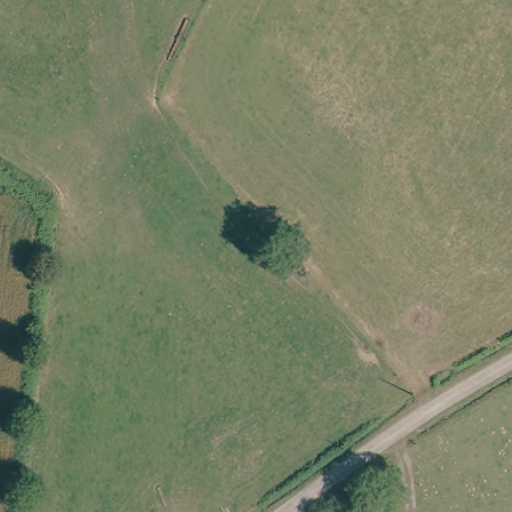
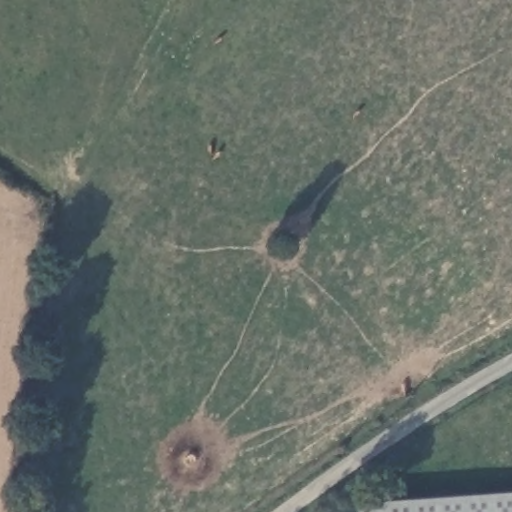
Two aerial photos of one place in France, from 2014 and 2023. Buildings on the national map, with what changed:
new [(357,512),(356,501),(512,491),(512,512),(357,512)]

